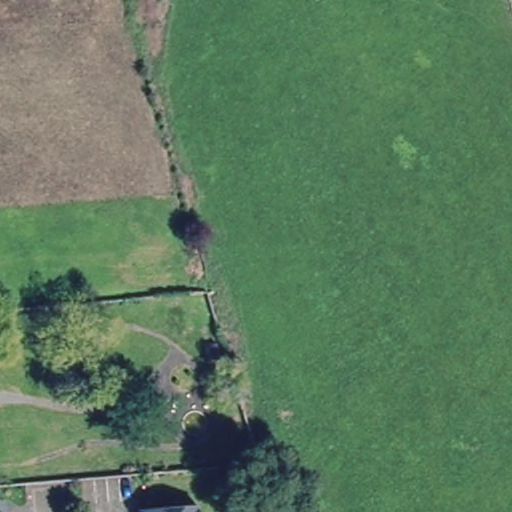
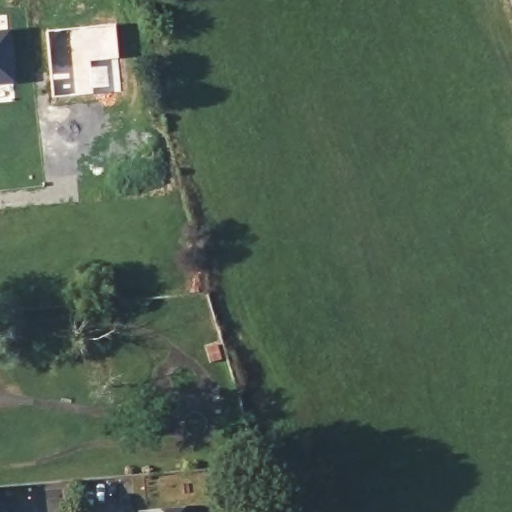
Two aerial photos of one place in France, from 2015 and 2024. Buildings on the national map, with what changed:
new [(115,25),(120,90),(52,97),(46,31),(115,25)]
new [(10,30),(15,84),(0,85),(0,31),(10,30)]
unchanged [(7,501),(8,509),(8,512),(0,512),(0,502),(7,501)]
unchanged [(195,512),(135,512),(135,506),(194,501),(195,512)]

